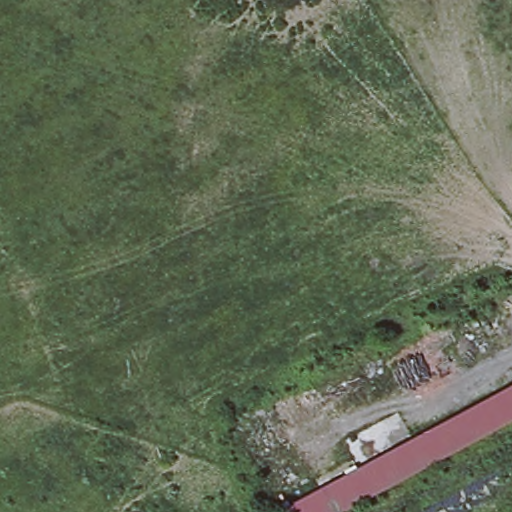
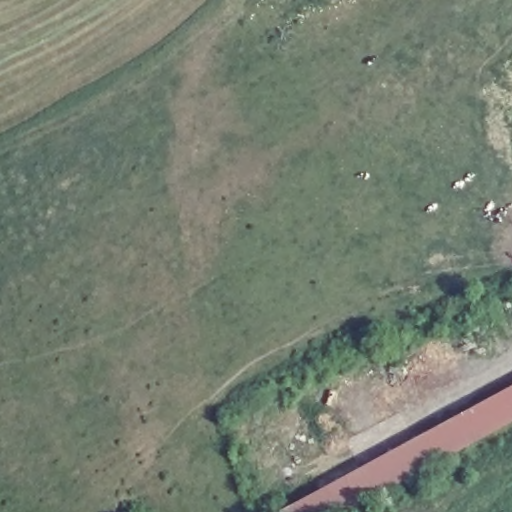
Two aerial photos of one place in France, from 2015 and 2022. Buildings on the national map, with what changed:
unchanged [(426,467),(425,465),(412,440),(512,387),(512,421),(485,436),(426,467)]
unchanged [(358,469),(412,440),(425,465),(426,467),(372,496),(370,491),(358,469)]
unchanged [(370,491),(372,496),(343,512),(279,512),(358,469),(370,491)]

